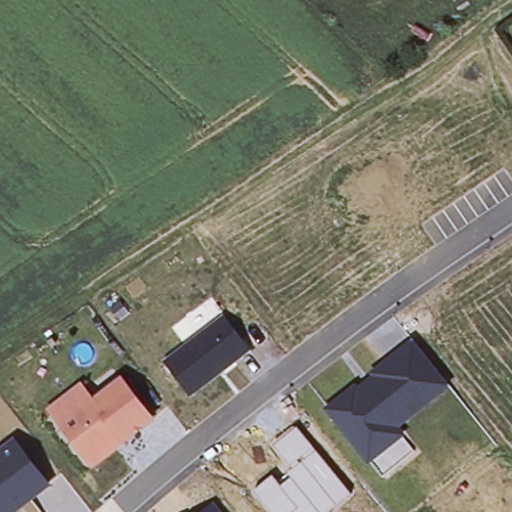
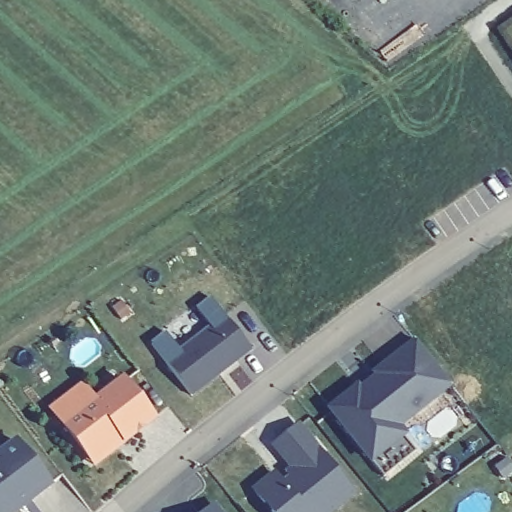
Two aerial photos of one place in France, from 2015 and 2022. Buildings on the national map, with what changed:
unchanged [(223,316),(250,351),(192,396),(164,362),(223,316)]
unchanged [(355,387),(359,390),(373,380),(371,375),(416,341),(451,388),(400,427),(407,436),(371,464),(326,411),(355,387)]
unchanged [(83,383),(94,397),(122,378),(155,420),(92,468),(45,409),(83,383)]
unchanged [(327,512),(270,512),(255,491),(273,476),(278,481),(294,469),(274,444),(297,428),(351,492),(327,512)]
unchanged [(15,442),(46,483),(10,512),(0,512),(0,453),(15,442)]
unchanged [(219,512),(205,512),(214,506),(219,512)]

